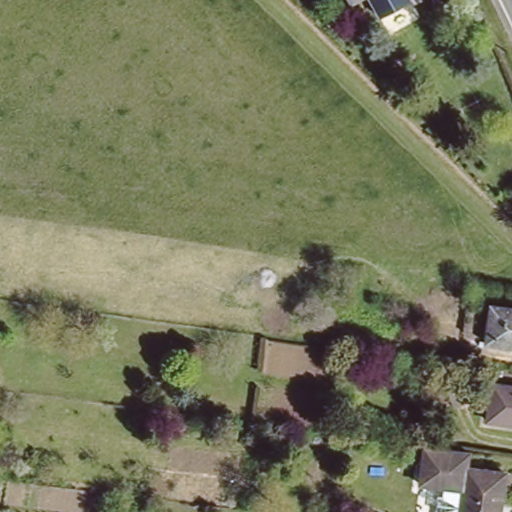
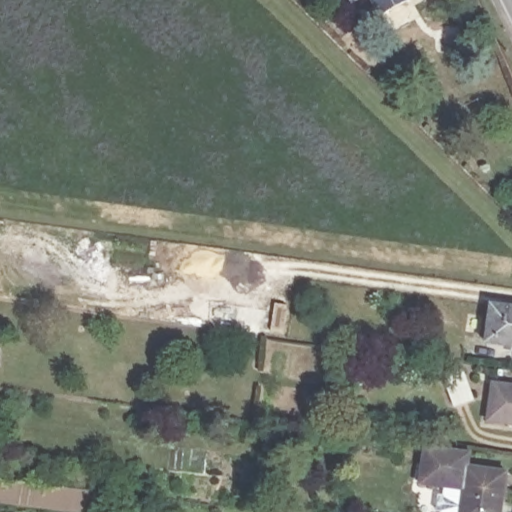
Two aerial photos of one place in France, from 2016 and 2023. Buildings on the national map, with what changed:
unchanged [(343,7),(339,0),(356,0),(343,7)]
unchanged [(512,310),(512,348),(483,344),(489,306),(512,310)]
unchanged [(474,365),(470,396),(450,394),(453,362),(474,365)]
unchanged [(512,422),(487,419),(490,383),(512,385),(512,422)]
unchanged [(420,489),(424,450),(471,457),(469,473),(510,480),(505,512),(461,512),(463,495),(420,489)]

